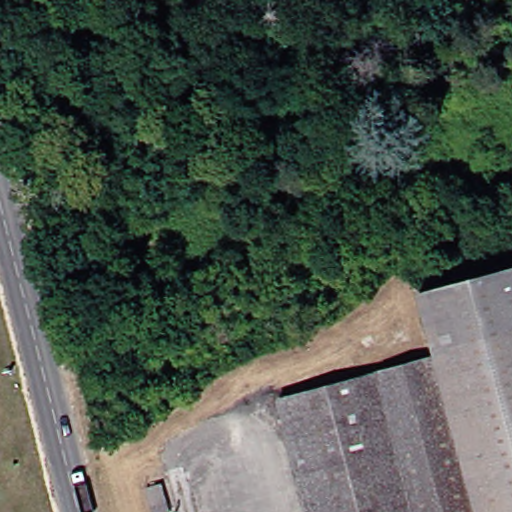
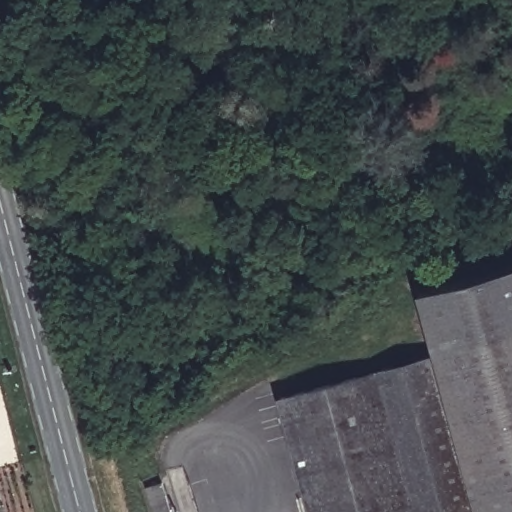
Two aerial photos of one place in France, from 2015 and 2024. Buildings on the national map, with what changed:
unchanged [(274,397),(431,355),(415,292),(512,266),(512,512),(304,512),(274,397)]
unchanged [(147,487),(162,482),(170,511),(167,512),(154,512),(147,487)]

